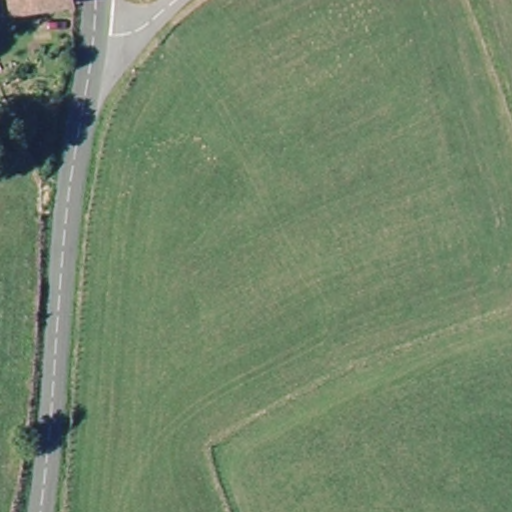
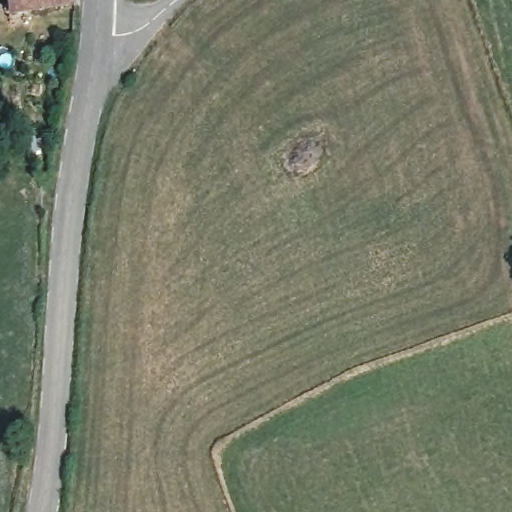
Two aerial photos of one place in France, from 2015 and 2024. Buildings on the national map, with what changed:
unchanged [(76,7),(74,8),(29,15),(19,17),(16,0),(75,0),(76,7)]

